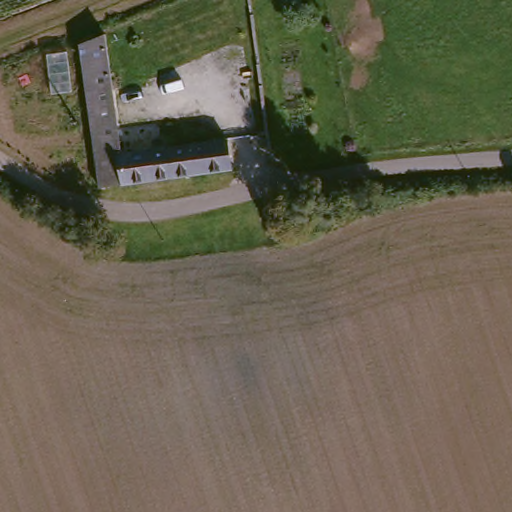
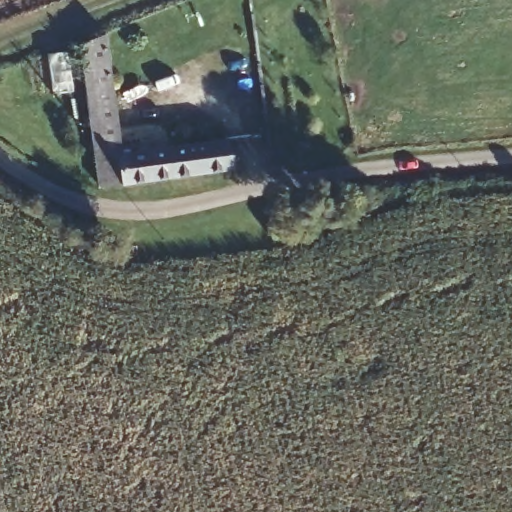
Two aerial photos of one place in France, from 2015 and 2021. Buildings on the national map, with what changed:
unchanged [(78,46),(102,33),(116,155),(216,146),(218,178),(86,189),(78,46)]

